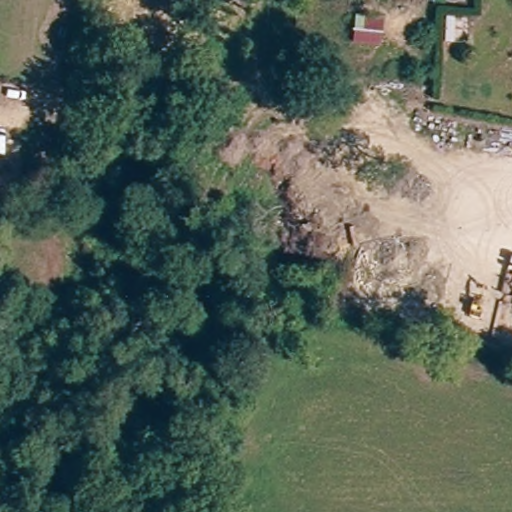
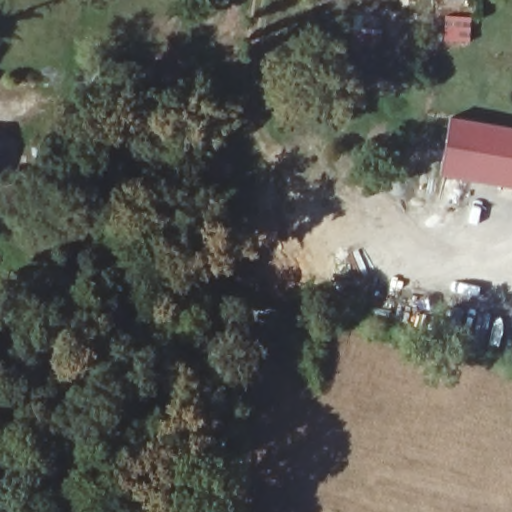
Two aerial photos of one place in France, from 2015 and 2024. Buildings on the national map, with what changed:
new [(463,1),(446,1),(446,0),(463,0),(463,1)]
new [(441,175),(451,118),(512,128),(512,187),(441,175)]

